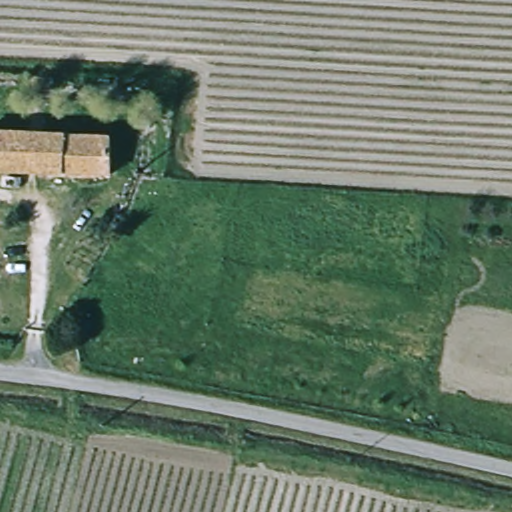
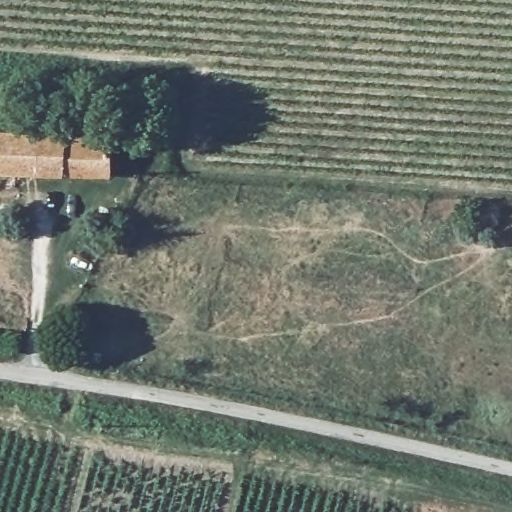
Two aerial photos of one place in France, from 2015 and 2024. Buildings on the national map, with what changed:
unchanged [(0,171),(0,134),(111,139),(111,177),(0,171)]

